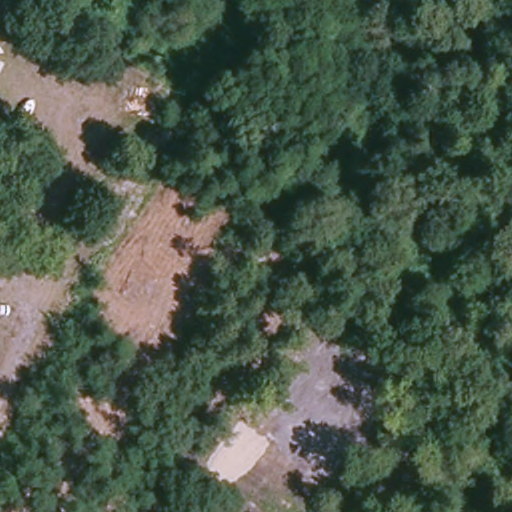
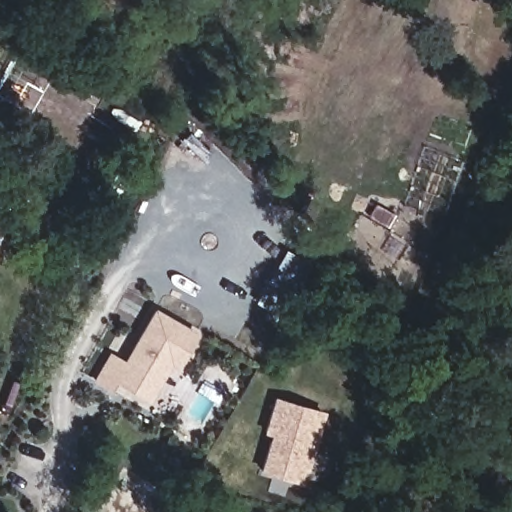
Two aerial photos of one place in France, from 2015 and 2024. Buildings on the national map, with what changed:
new [(111,352),(125,360),(155,308),(199,332),(178,368),(171,364),(150,401),(116,383),(111,391),(94,381),(111,352)]
new [(326,411),(306,485),(262,471),(272,431),(266,430),(275,397),(326,411)]

